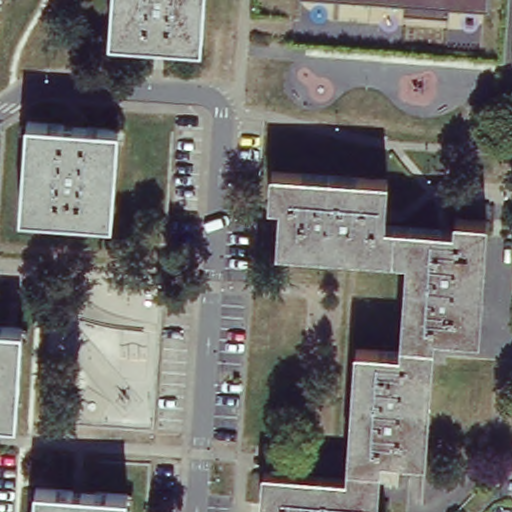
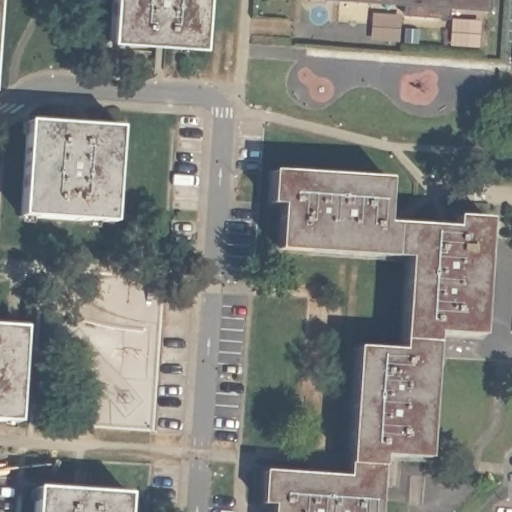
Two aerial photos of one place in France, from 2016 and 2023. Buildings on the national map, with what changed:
unchanged [(2,0),(0,23),(0,0),(2,0)]
unchanged [(205,0),(202,47),(110,41),(113,0),(205,0)]
unchanged [(447,16),(402,13),(402,3),(370,0),(487,0),(486,8),(448,6),(447,16)]
unchanged [(32,121),(124,128),(118,222),(25,216),(32,121)]
unchanged [(348,465),(356,348),(400,352),(407,258),(277,249),(280,204),(270,204),(271,172),(387,179),(385,224),(454,229),(455,218),(486,220),(480,335),(435,332),(426,458),(381,455),(380,467),(379,480),(377,512),(271,512),(272,505),(261,504),(263,472),(347,478),(348,465)]
unchanged [(28,328),(22,422),(0,421),(0,326),(28,328)]
unchanged [(41,488),(133,494),(132,512),(39,512),(41,488)]

